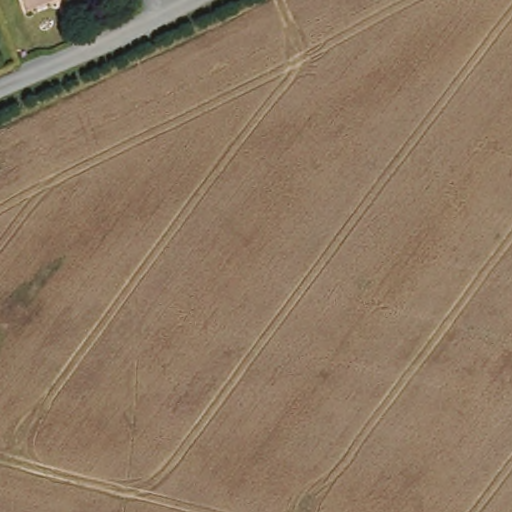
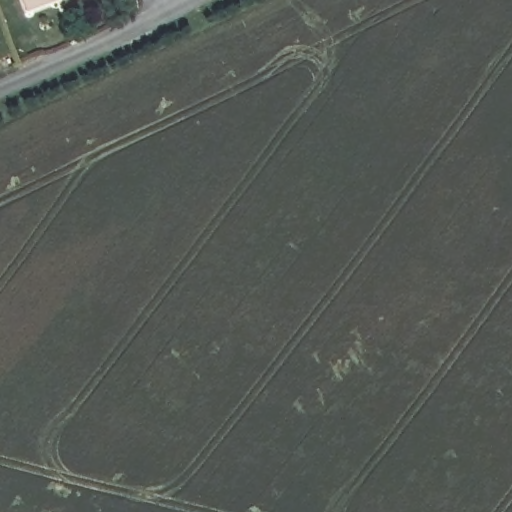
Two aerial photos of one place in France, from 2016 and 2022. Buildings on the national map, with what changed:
unchanged [(19,7),(16,0),(38,0),(19,7)]
unchanged [(54,1),(54,0),(57,0),(54,1)]

